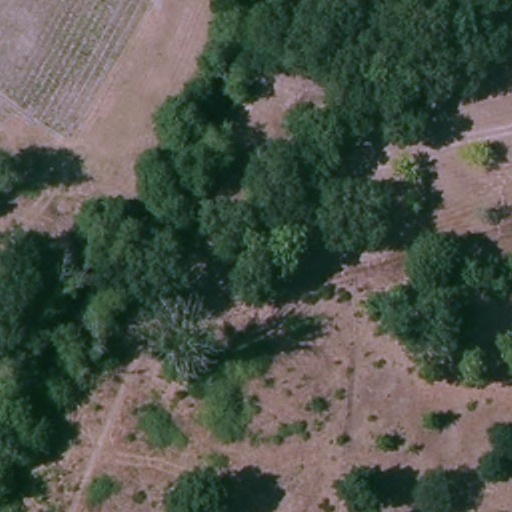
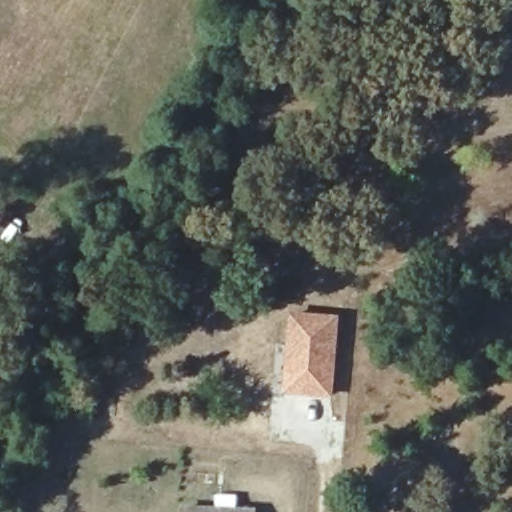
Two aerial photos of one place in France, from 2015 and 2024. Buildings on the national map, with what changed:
new [(292,316),(336,318),(333,394),(289,392),(292,316)]
new [(181,506),(257,508),(257,512),(181,512),(181,506)]

